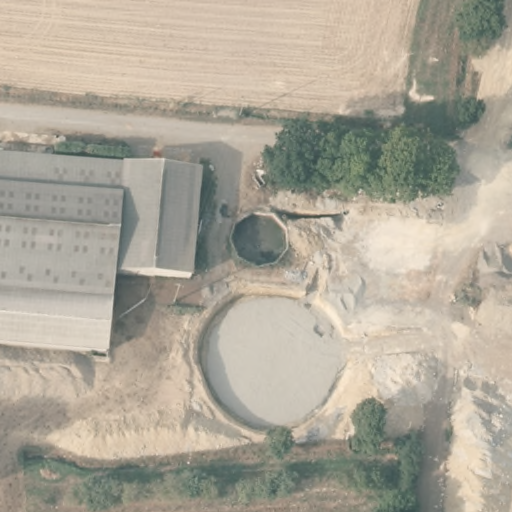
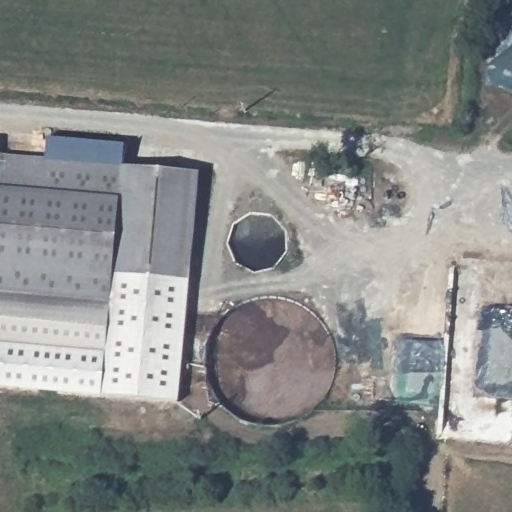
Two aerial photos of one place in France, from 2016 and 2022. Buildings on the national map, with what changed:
unchanged [(0,345),(0,157),(122,168),(112,275),(106,354),(0,345)]
unchanged [(112,275),(122,168),(200,175),(190,282),(112,275)]
new [(0,388),(0,345),(106,354),(112,275),(190,282),(179,405),(0,388)]

